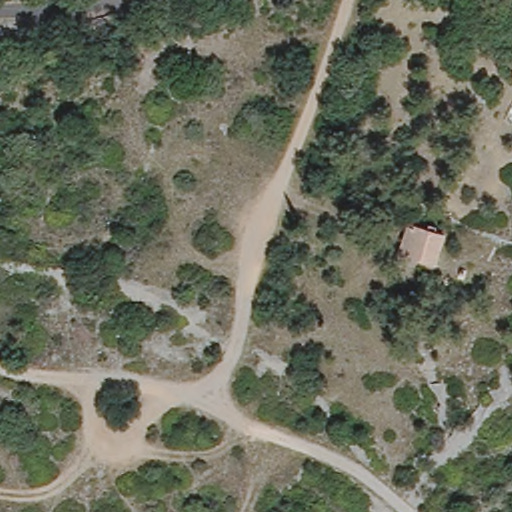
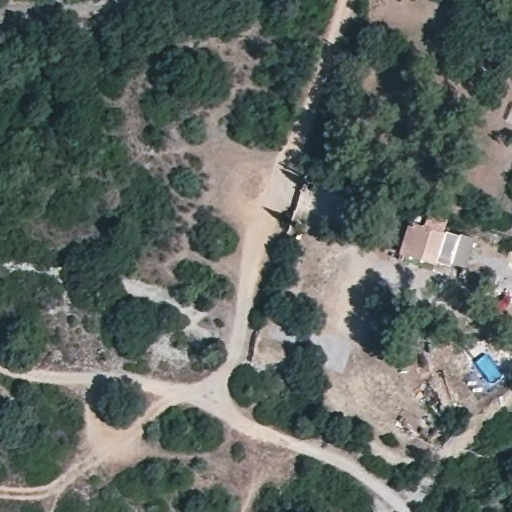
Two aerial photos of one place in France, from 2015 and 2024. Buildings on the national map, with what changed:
unchanged [(399,244),(405,223),(441,234),(432,263),(418,259),(396,252),(399,244)]

